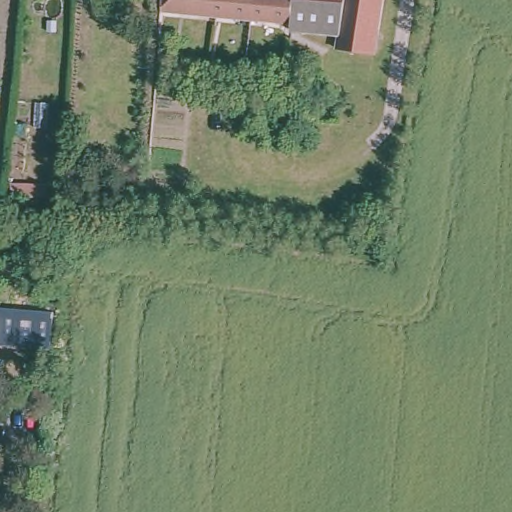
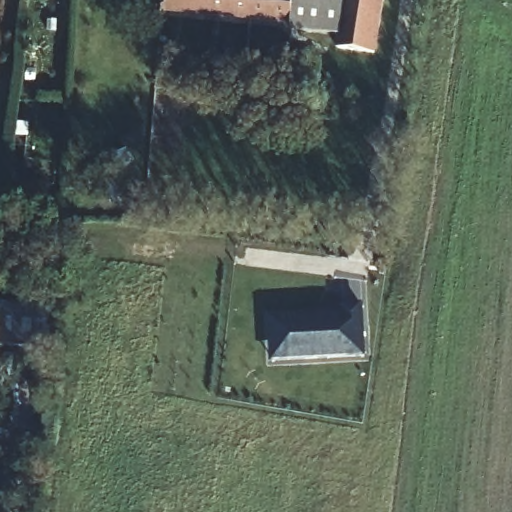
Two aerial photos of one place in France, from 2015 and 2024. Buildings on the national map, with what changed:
unchanged [(291,30),(292,23),(173,13),(171,36),(159,34),(161,11),(163,0),(383,0),(374,53),(339,50),(339,47),(332,46),(334,34),(291,30)]
unchanged [(48,187),(48,198),(10,197),(11,185),(48,187)]
unchanged [(4,193),(1,210),(0,209),(0,192),(4,193)]
new [(269,316),(342,312),(342,305),(361,304),(366,356),(271,362),(269,316)]
unchanged [(2,317),(0,317),(0,307),(54,313),(52,347),(0,344),(2,317)]
unchanged [(2,317),(0,345),(0,317),(2,317)]

